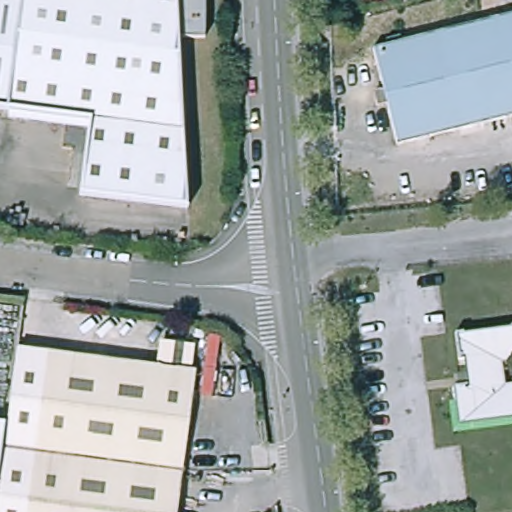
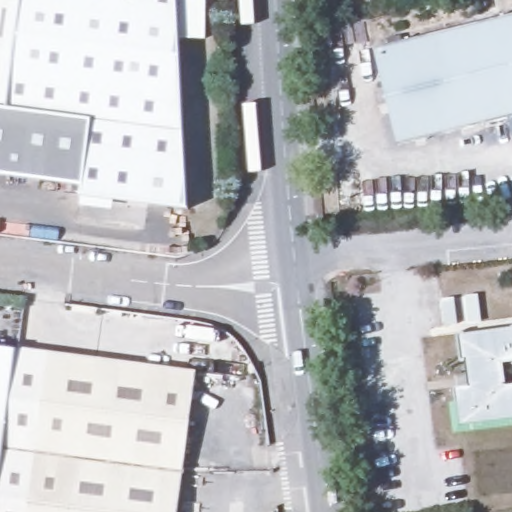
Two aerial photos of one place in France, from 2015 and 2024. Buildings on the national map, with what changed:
unchanged [(0,0),(9,0),(0,67),(0,0)]
unchanged [(170,36),(186,209),(67,195),(77,120),(0,109),(0,67),(9,0),(169,0),(170,36)]
unchanged [(170,36),(169,0),(195,0),(196,36),(170,36)]
unchanged [(411,141),(387,42),(512,13),(512,117),(411,141)]
new [(0,109),(77,120),(69,180),(0,173),(0,109)]
unchanged [(456,420),(452,385),(466,383),(464,357),(458,358),(454,331),(512,325),(512,414),(456,420)]
unchanged [(16,343),(200,368),(184,512),(0,512),(0,506),(3,481),(16,343)]
new [(3,481),(0,506),(0,347),(16,349),(3,481)]
demolished [(0,506),(0,481),(3,481),(0,506)]

